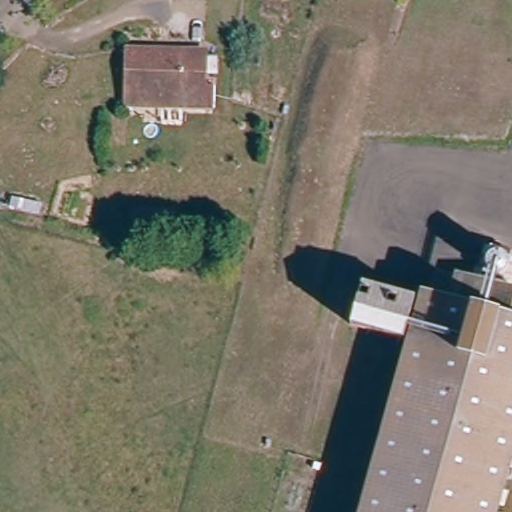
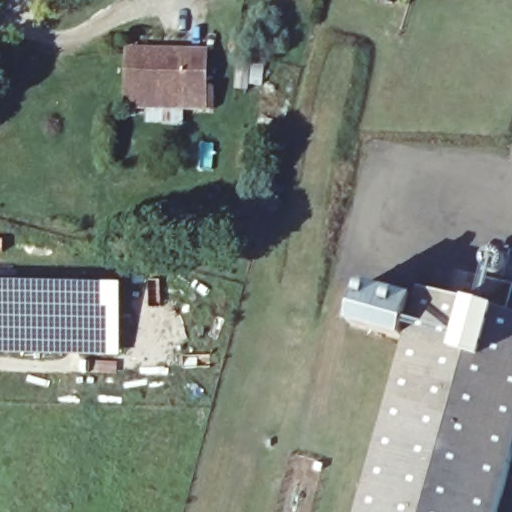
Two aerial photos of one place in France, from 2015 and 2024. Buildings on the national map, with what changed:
unchanged [(180,95),(121,91),(125,45),(182,47),(180,95)]
unchanged [(200,111),(120,106),(121,91),(180,95),(182,47),(203,48),(200,111)]
new [(2,251),(0,251),(0,238),(2,238),(2,251)]
unchanged [(452,293),(461,265),(512,281),(512,297),(508,308),(452,293)]
unchanged [(410,293),(398,333),(346,317),(357,278),(410,293)]
new [(119,356),(114,356),(99,355),(27,355),(0,354),(0,279),(122,281),(119,356)]
unchanged [(452,293),(508,308),(512,309),(512,444),(492,512),(353,512),(420,284),(452,293)]

